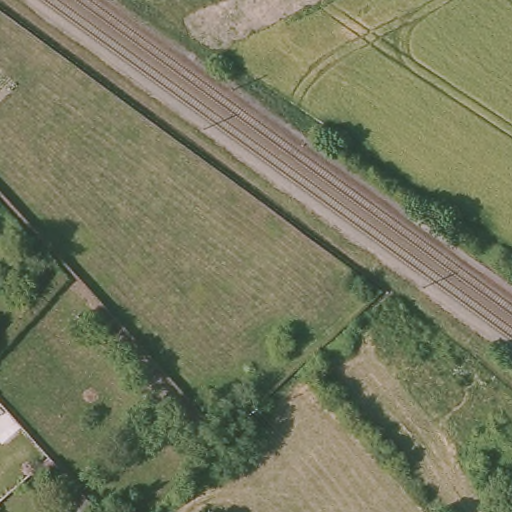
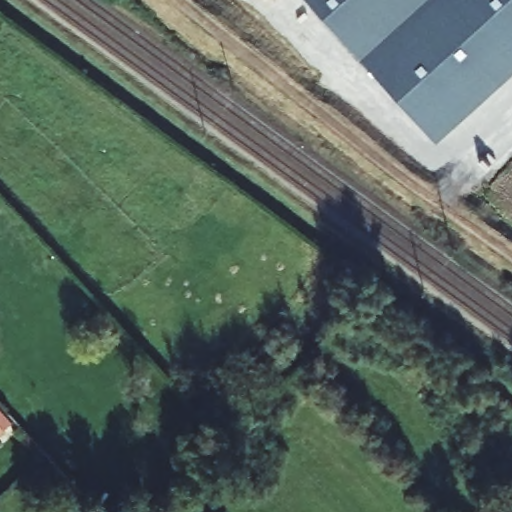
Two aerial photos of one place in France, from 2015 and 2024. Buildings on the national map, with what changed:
new [(273,7),(267,0),(280,0),(273,7)]
new [(308,0),(512,0),(512,71),(436,140),(308,0)]

